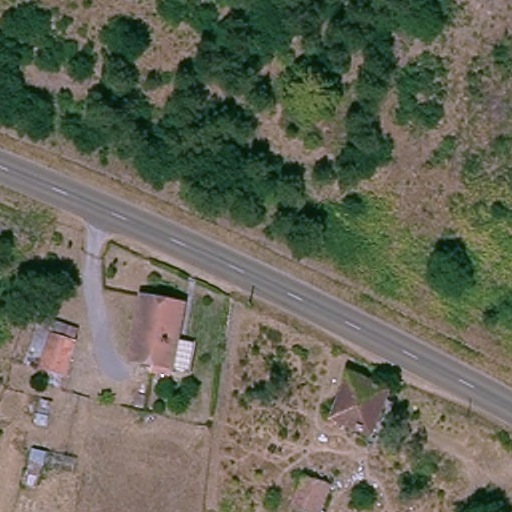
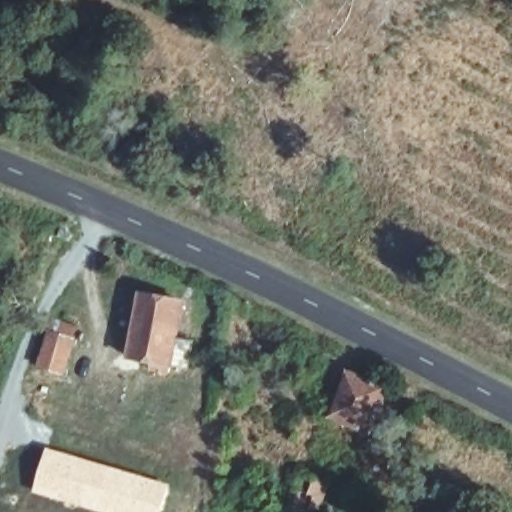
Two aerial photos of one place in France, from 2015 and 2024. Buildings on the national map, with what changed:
unchanged [(185,302),(174,365),(132,357),(145,293),(185,302)]
unchanged [(55,319),(79,326),(64,375),(57,373),(40,368),(55,319)]
unchanged [(336,419),(353,376),(392,388),(375,432),(336,419)]
new [(170,485),(162,512),(97,512),(32,493),(46,448),(170,485)]
unchanged [(323,468),(334,472),(330,479),(334,481),(324,512),(319,512),(295,504),(283,499),(293,468),(305,471),(320,477),(323,468)]

